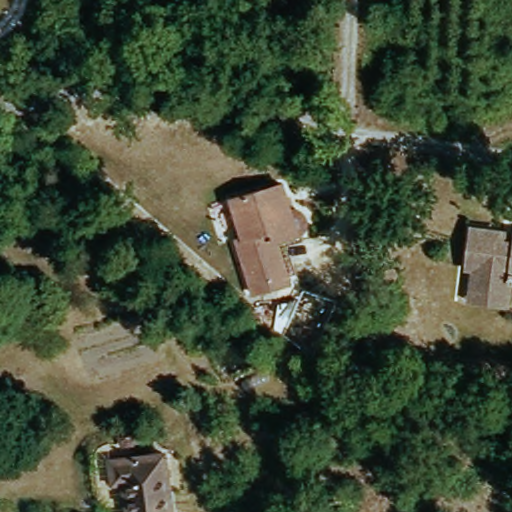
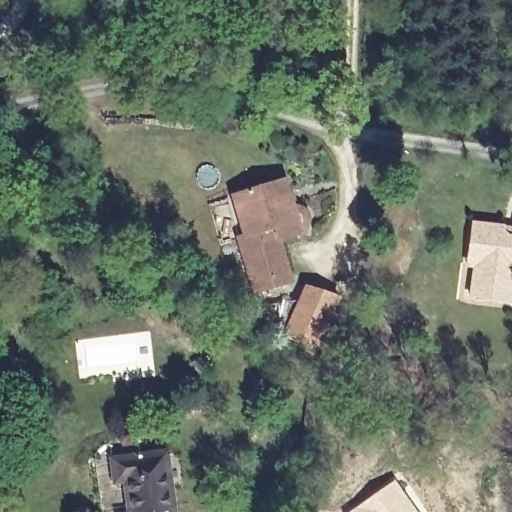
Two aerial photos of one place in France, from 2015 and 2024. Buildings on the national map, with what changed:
unchanged [(297,285),(261,297),(242,243),(249,240),(236,202),(286,184),(295,211),(297,210),(298,210),(300,210),(303,211),(305,211),(307,213),(308,214),(310,216),(310,218),(311,220),(311,223),(311,225),(310,229),(308,231),(303,235),(282,242),(297,285)]
unchanged [(472,291),(474,272),(466,271),(466,264),(470,230),(500,233),(512,234),(512,284),(511,284),(510,309),(471,306),(472,291)]
new [(303,283),(336,295),(313,351),(285,332),(303,283)]
unchanged [(174,512),(136,512),(133,489),(120,490),(119,464),(167,458),(174,512)]
new [(419,512),(348,512),(395,479),(419,512)]

